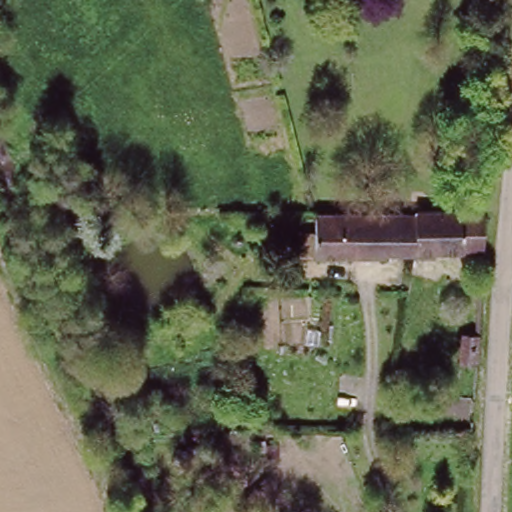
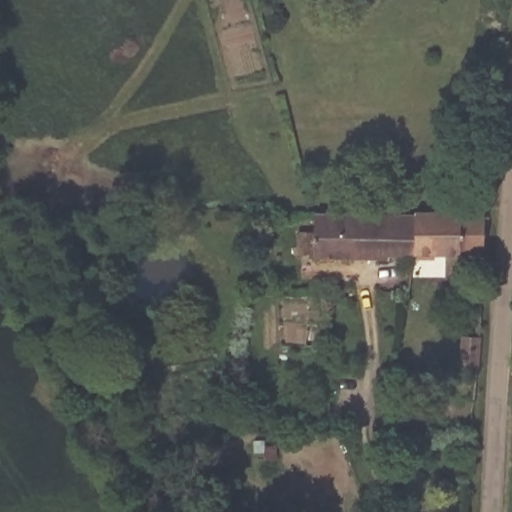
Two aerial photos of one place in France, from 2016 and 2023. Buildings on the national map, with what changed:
unchanged [(417,216),(415,250),(392,250),(392,259),(315,260),(315,215),(417,216)]
unchanged [(486,250),(415,250),(417,216),(485,216),(486,250)]
unchanged [(462,331),(478,331),(477,360),(460,360),(462,331)]

